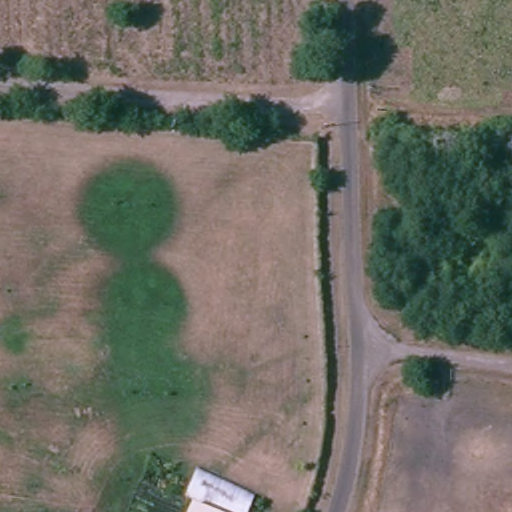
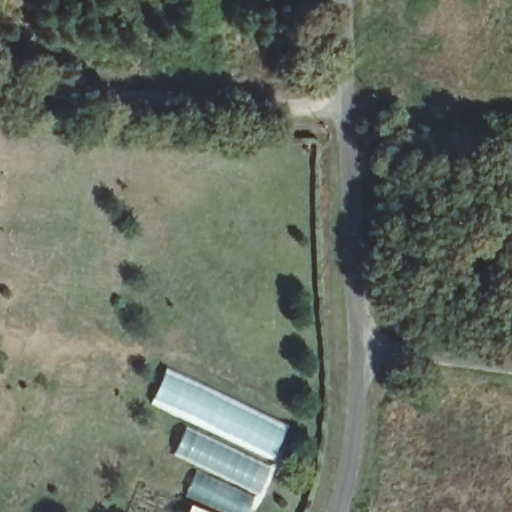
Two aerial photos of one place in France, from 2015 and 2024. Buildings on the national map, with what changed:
new [(185,422),(150,405),(166,370),(286,427),(278,443),(272,463),(185,422)]
new [(272,463),(246,512),(221,512),(185,494),(198,464),(171,451),(185,422),(272,463)]
new [(189,502),(214,512),(185,512),(189,502)]

